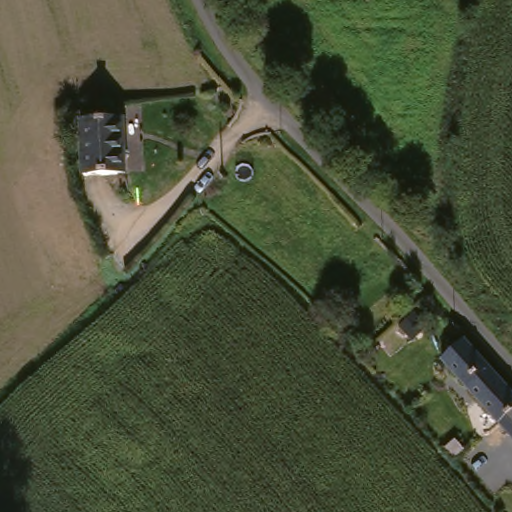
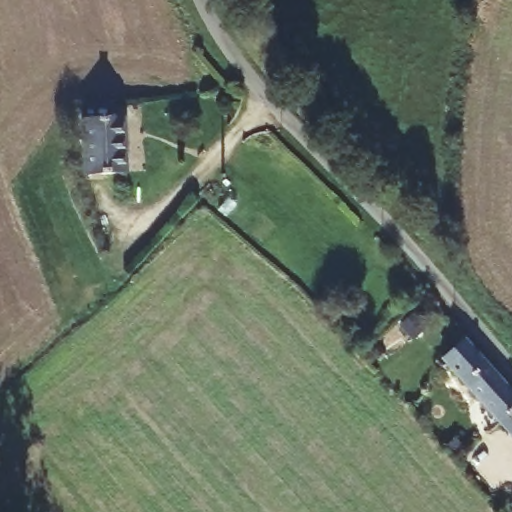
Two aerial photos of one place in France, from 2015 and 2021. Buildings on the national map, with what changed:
unchanged [(79,115),(126,112),(128,167),(82,171),(79,115)]
unchanged [(473,332),(474,333),(512,377),(512,404),(504,410),(502,412),(451,353),(452,352),(473,332)]
unchanged [(512,423),(502,412),(504,410),(512,404),(512,423)]

